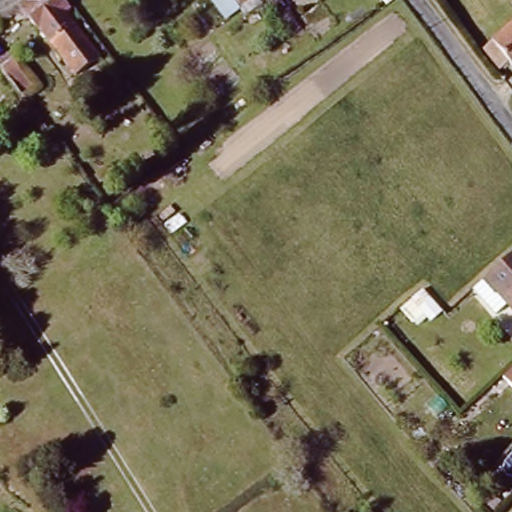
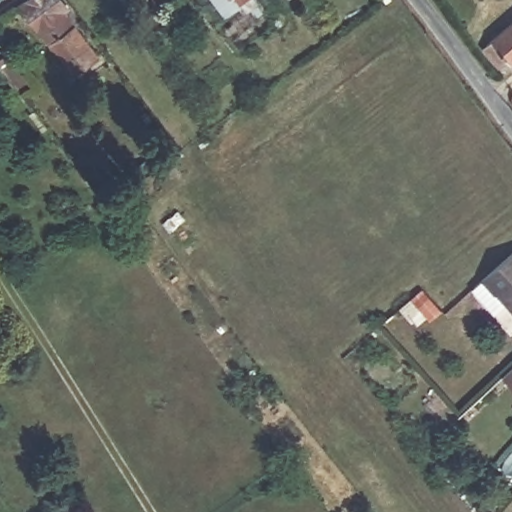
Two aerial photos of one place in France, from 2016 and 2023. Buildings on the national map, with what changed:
unchanged [(69,20),(100,58),(78,76),(25,10),(40,0),(62,0),(75,16),(69,20)]
unchanged [(131,0),(184,0),(146,25),(131,0)]
unchanged [(231,25),(210,0),(259,0),(261,2),(231,25)]
unchanged [(508,62),(491,44),(512,26),(512,58),(508,62)]
unchanged [(51,112),(38,123),(17,96),(6,82),(19,72),(51,112)]
unchanged [(502,293),(500,295),(492,278),(512,260),(512,305),(502,293)]
unchanged [(501,373),(512,364),(512,386),(501,373)]

